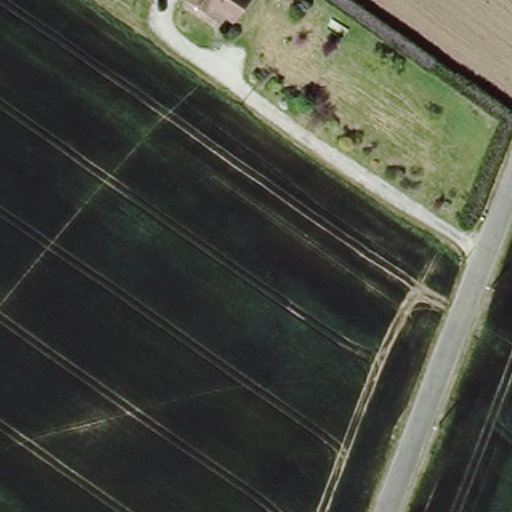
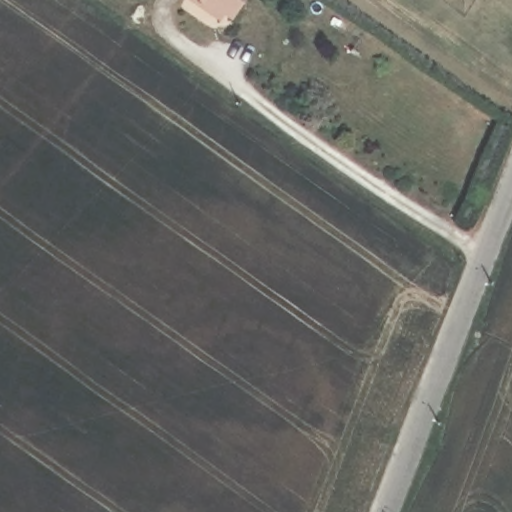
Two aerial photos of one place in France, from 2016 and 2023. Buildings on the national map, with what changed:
unchanged [(215,8),(200,23),(174,3),(177,0),(246,0),(229,19),(215,8)]

